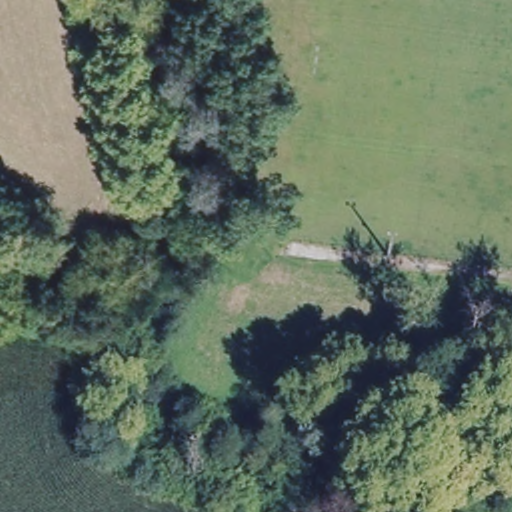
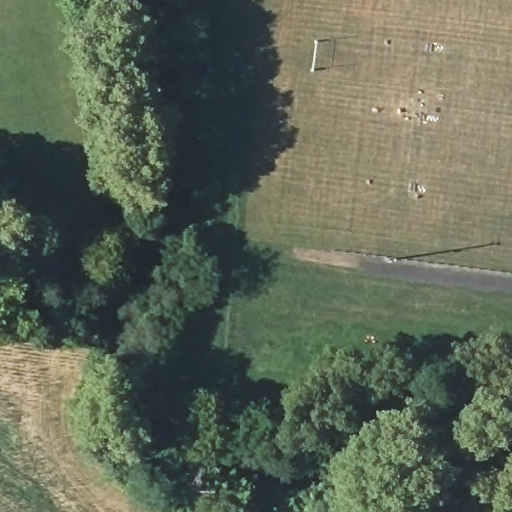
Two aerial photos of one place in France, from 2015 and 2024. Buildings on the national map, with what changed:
[]

